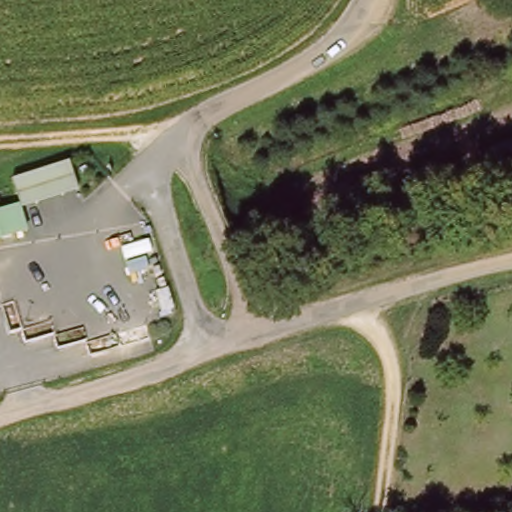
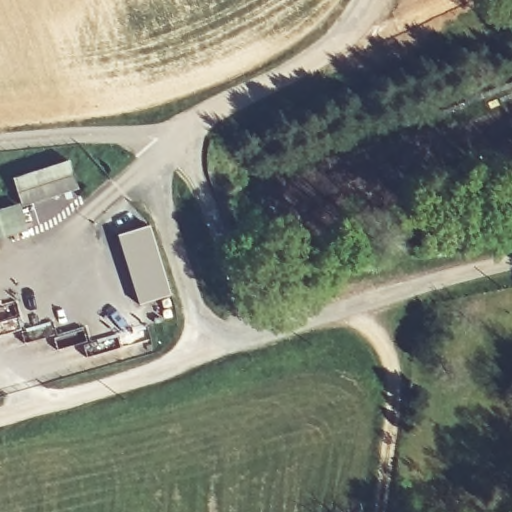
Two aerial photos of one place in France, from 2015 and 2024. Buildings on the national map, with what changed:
unchanged [(22,216),(13,187),(70,170),(79,198),(63,203),(38,211),(22,216)]
unchanged [(26,238),(0,246),(0,220),(19,214),(22,225),(26,238)]
new [(149,226),(170,295),(139,305),(117,235),(149,226)]

